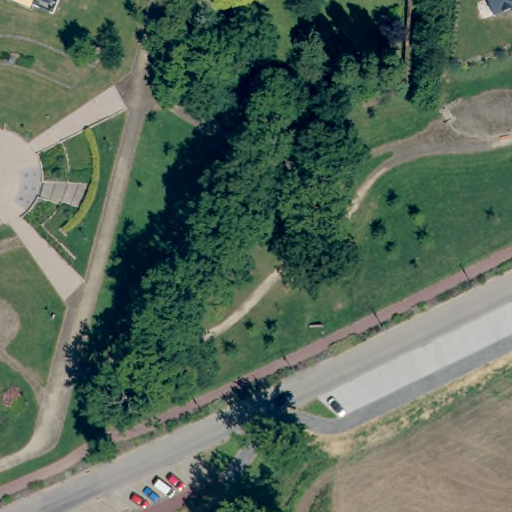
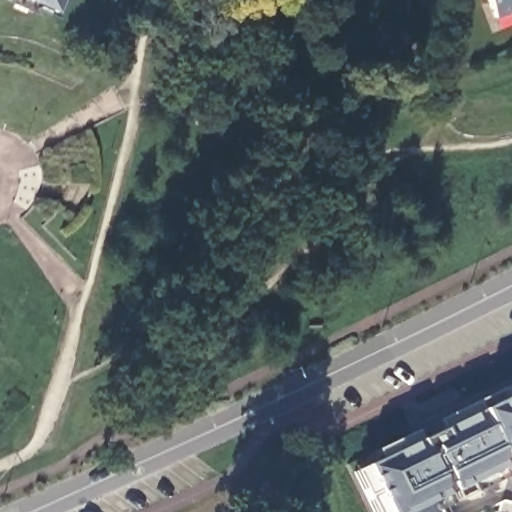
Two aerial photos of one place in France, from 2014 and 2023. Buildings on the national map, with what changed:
unchanged [(55,15),(35,7),(37,3),(30,0),(61,0),(55,15)]
unchanged [(509,12),(494,17),(488,0),(512,0),(512,14),(511,15),(509,12)]
new [(364,468),(379,461),(374,451),(413,432),(418,442),(425,437),(421,430),(435,422),(501,391),(503,393),(512,390),(512,474),(471,494),(467,496),(470,500),(446,512),(372,512),(353,473),(364,468)]

